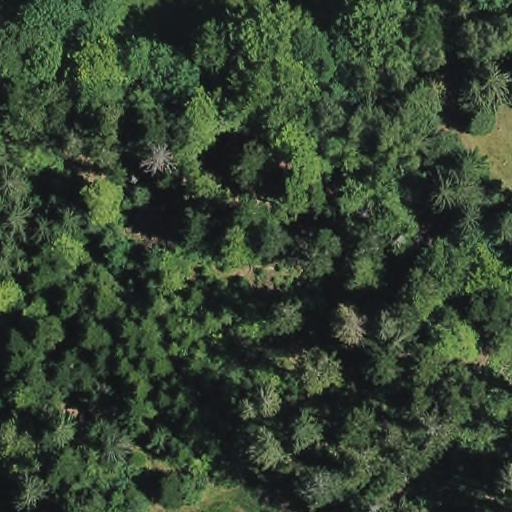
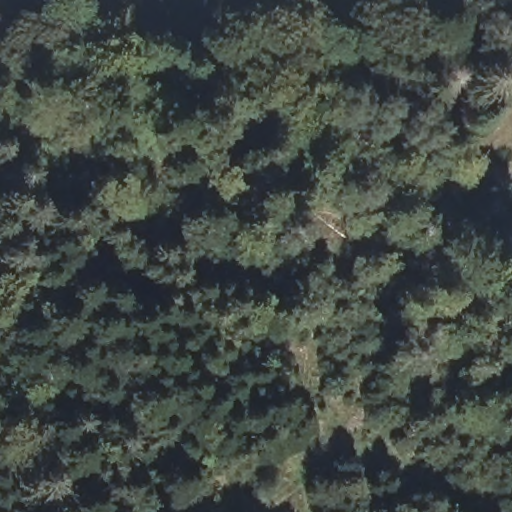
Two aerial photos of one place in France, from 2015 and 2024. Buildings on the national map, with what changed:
[]

